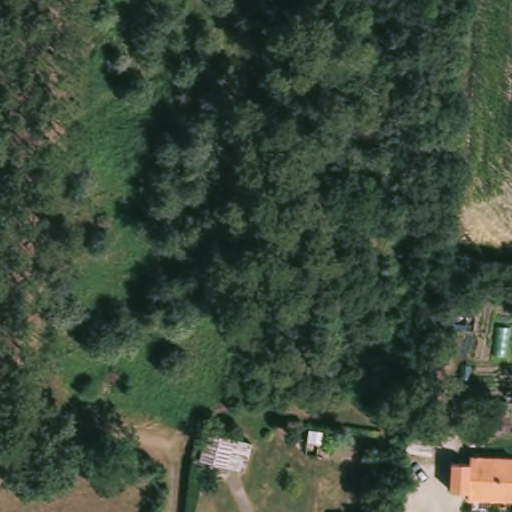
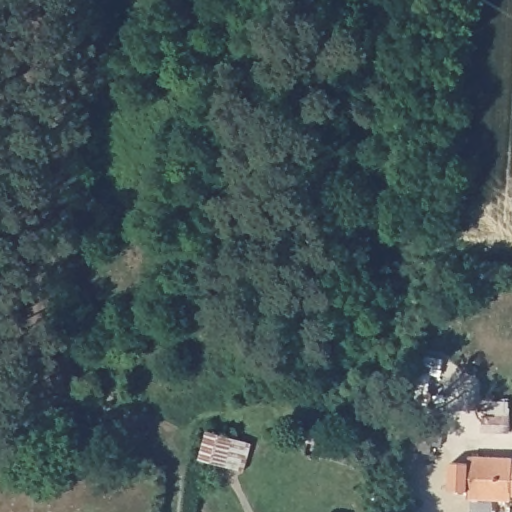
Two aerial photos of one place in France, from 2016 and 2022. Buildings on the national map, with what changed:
unchanged [(505,410),(505,427),(480,426),(481,409),(505,410)]
unchanged [(252,445),(247,471),(202,462),(207,437),(252,445)]
unchanged [(512,502),(470,501),(470,494),(450,493),(452,468),(469,468),(471,458),(512,460),(512,502)]

